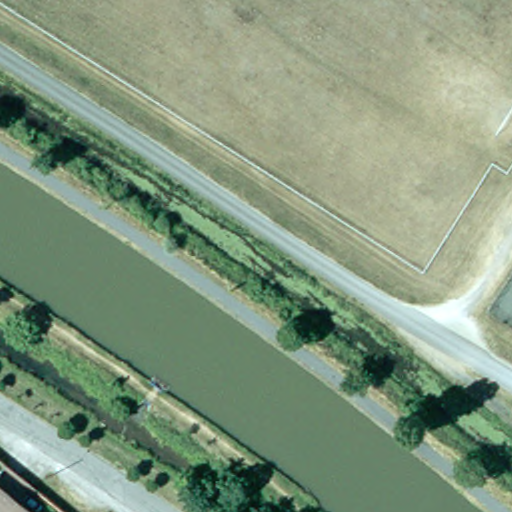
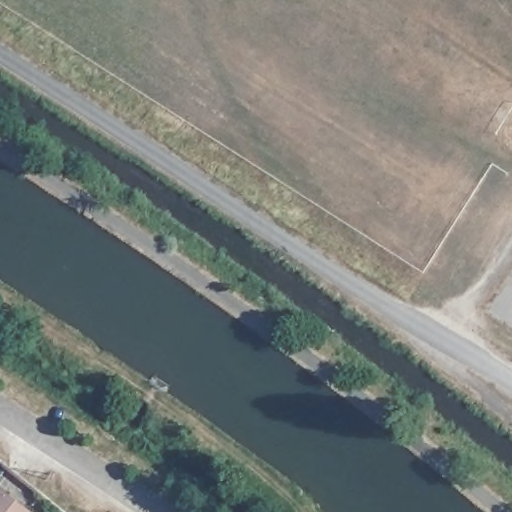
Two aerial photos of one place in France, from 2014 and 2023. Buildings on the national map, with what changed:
unchanged [(27,512),(0,512),(0,491),(27,512)]

